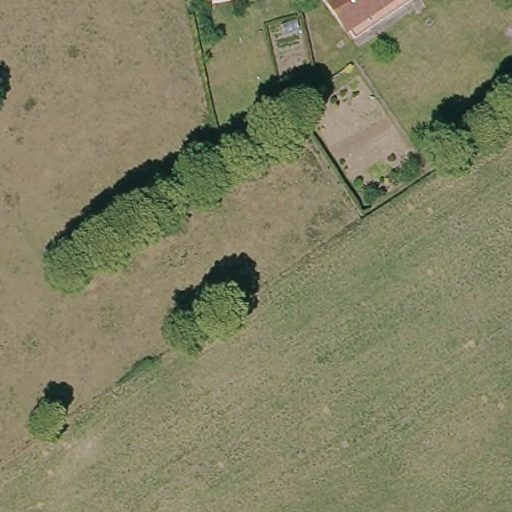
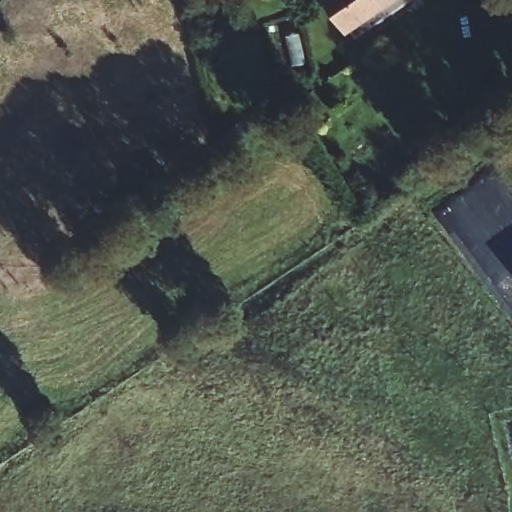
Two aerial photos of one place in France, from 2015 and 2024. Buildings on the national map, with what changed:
unchanged [(345,34),(322,0),(394,0),(345,34)]

